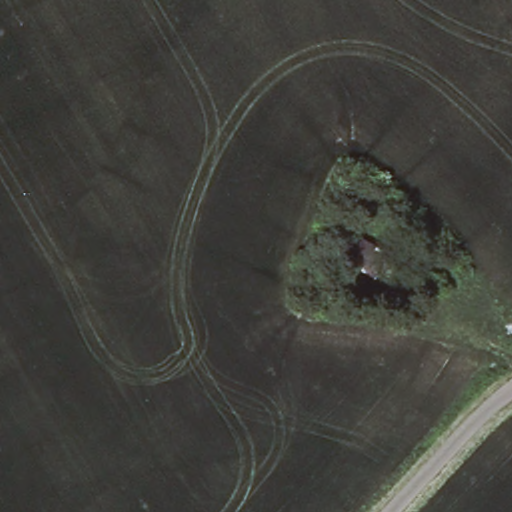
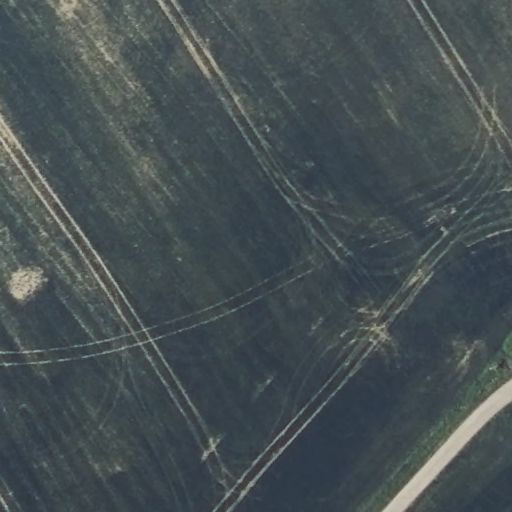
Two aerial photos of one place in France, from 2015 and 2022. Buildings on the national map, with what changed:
unchanged [(355,237),(385,252),(376,273),(346,258),(355,237)]

